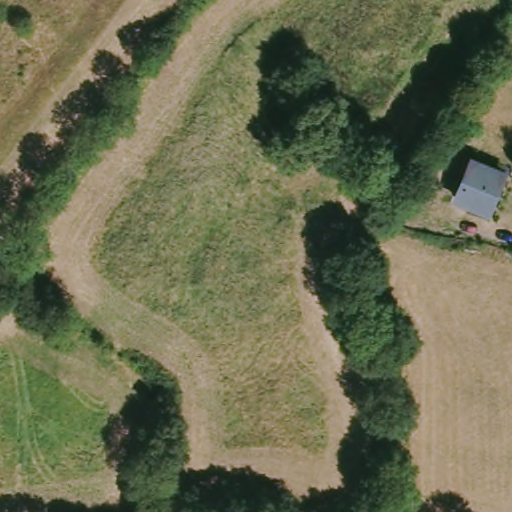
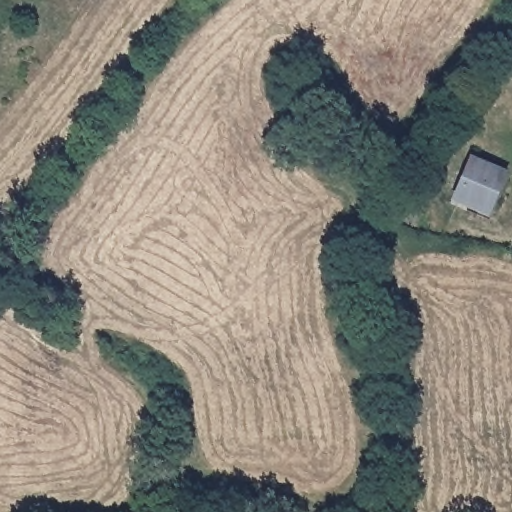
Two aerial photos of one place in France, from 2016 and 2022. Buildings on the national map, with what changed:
unchanged [(478,111),(464,134),(450,126),(465,102),(478,111)]
unchanged [(502,172),(485,212),(457,200),(474,160),(502,172)]

